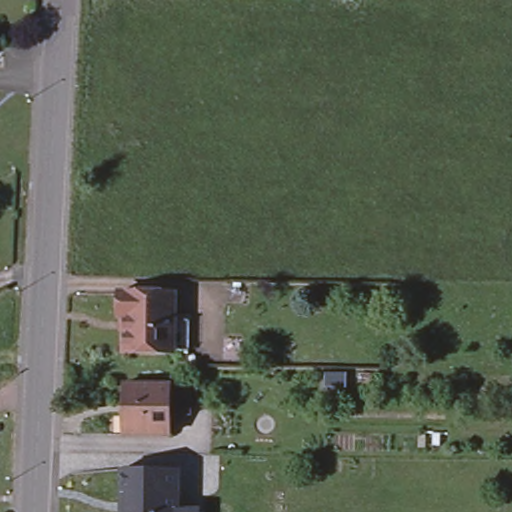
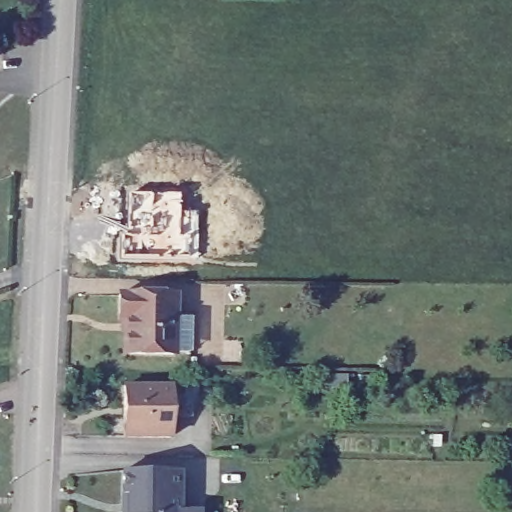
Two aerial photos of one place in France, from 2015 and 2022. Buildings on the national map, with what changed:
new [(182,191),(181,211),(198,212),(198,255),(122,257),(123,230),(131,230),(131,192),(182,191)]
unchanged [(188,347),(173,347),(173,350),(124,350),(123,315),(118,315),(118,291),(172,291),(173,316),(188,316),(188,347)]
unchanged [(186,385),(186,415),(164,415),(164,434),(118,435),(118,384),(165,385),(186,385)]
unchanged [(198,512),(122,512),(123,468),(178,468),(178,508),(198,508),(198,512)]

